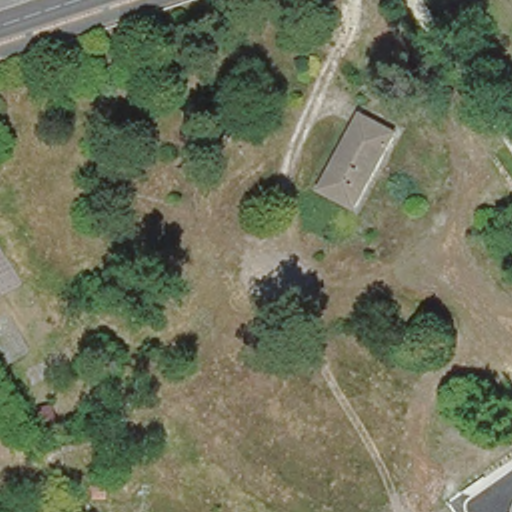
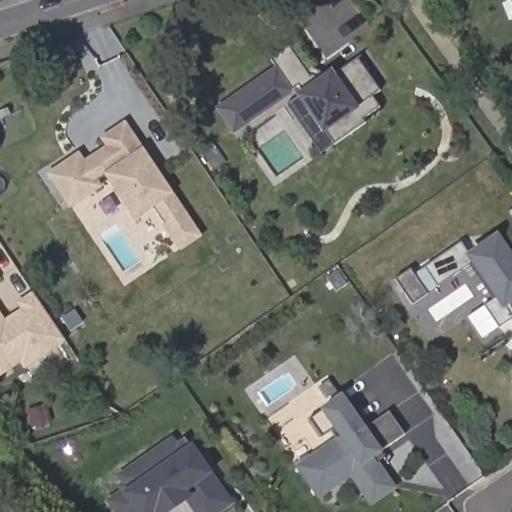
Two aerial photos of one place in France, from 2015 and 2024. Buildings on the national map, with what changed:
new [(508,0),(512,0),(512,10),(508,0)]
new [(325,134),(298,95),(303,92),(300,87),(293,92),(235,134),(217,108),(276,67),(267,53),(286,41),(316,81),(332,70),(335,72),(359,57),(381,92),(374,97),(381,107),(364,120),(367,123),(336,145),(325,134)]
demolished [(396,132),(357,206),(323,188),(361,114),(396,132)]
new [(81,154),(89,165),(112,150),(104,138),(126,122),(203,235),(184,247),(155,206),(138,217),(108,174),(99,180),(103,186),(73,206),(51,174),(81,154)]
new [(512,252),(512,320),(502,327),(486,306),(495,298),(472,262),(440,286),(428,267),(462,243),(470,252),(499,232),(512,252)]
new [(413,268),(430,294),(414,305),(396,279),(413,268)]
new [(24,310),(20,304),(34,294),(65,340),(25,367),(21,361),(4,373),(0,368),(0,316),(5,322),(24,310)]
new [(320,500),(296,466),(336,438),(332,432),(323,438),(309,419),(322,410),(344,395),(367,428),(391,412),(404,433),(382,449),(384,452),(378,457),(397,488),(372,507),(352,478),(320,500)]
new [(195,512),(189,502),(174,512),(116,512),(108,501),(123,492),(119,486),(123,483),(118,477),(174,435),(179,442),(186,437),(192,445),(213,475),(234,504),(222,512),(195,512)]

